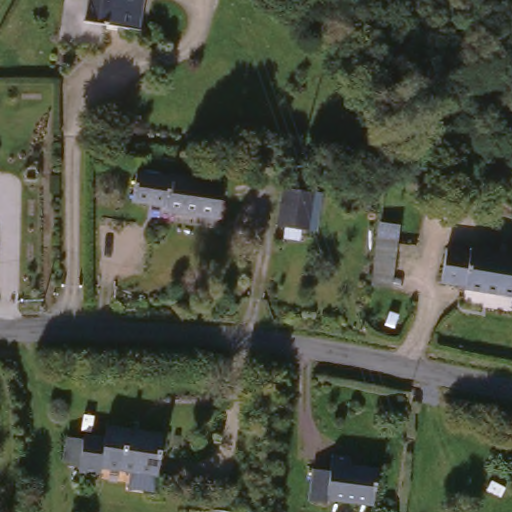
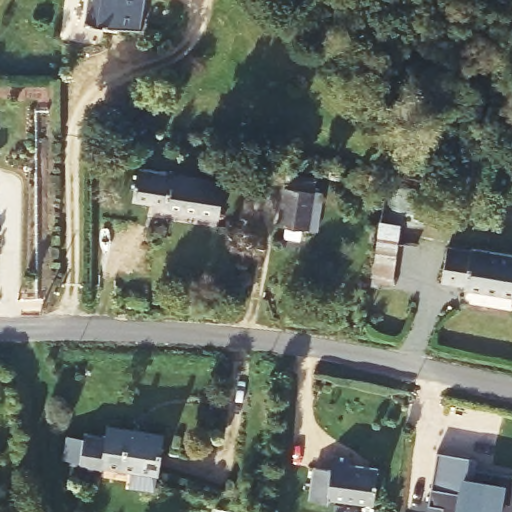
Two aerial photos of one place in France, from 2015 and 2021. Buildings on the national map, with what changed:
unchanged [(141,25),(86,17),(89,0),(145,0),(141,25)]
unchanged [(218,189),(213,222),(160,211),(128,206),(132,178),(163,183),(163,181),(218,189)]
unchanged [(278,238),(284,199),(286,187),(314,191),(313,203),(306,242),(278,238)]
unchanged [(371,286),(373,272),(377,242),(397,245),(393,275),(391,288),(371,286)]
unchanged [(512,302),(464,295),(465,292),(441,288),(447,252),(471,257),(471,255),(512,261),(512,302)]
unchanged [(163,441),(156,494),(131,490),(131,478),(103,473),(101,483),(79,481),(86,442),(106,445),(108,433),(163,441)]
new [(475,467),(512,472),(512,512),(455,512),(441,512),(442,507),(428,505),(437,452),(478,456),(475,467)]
unchanged [(378,477),(373,512),(328,506),(327,512),(308,510),(313,477),(331,479),(333,463),(351,466),(351,473),(378,477)]

